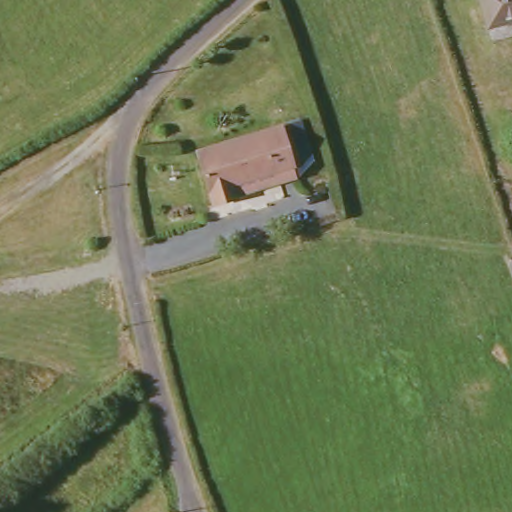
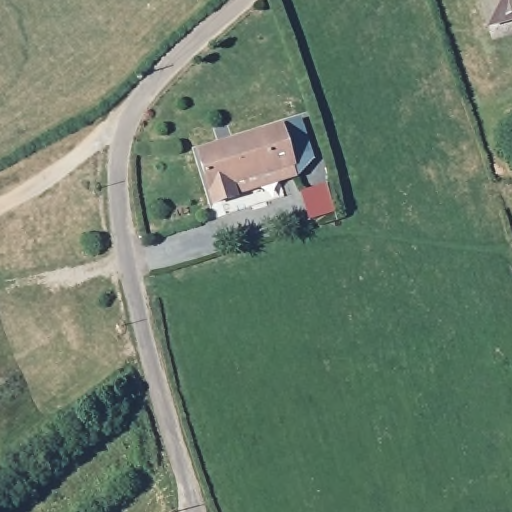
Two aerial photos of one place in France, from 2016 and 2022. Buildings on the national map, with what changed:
unchanged [(492,30),(486,0),(512,0),(512,26),(492,30)]
unchanged [(240,200),(217,207),(200,155),(284,127),(300,168),(304,179),(240,200)]

